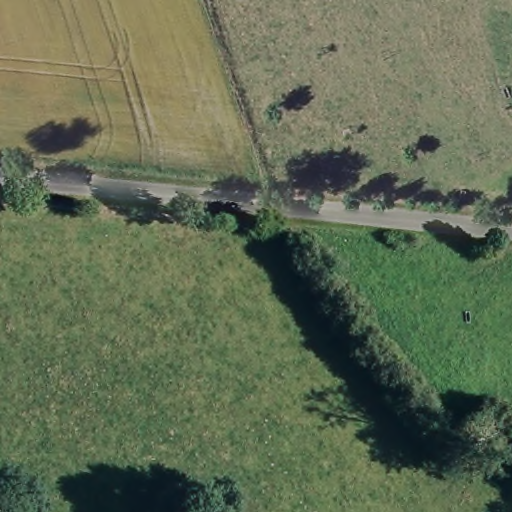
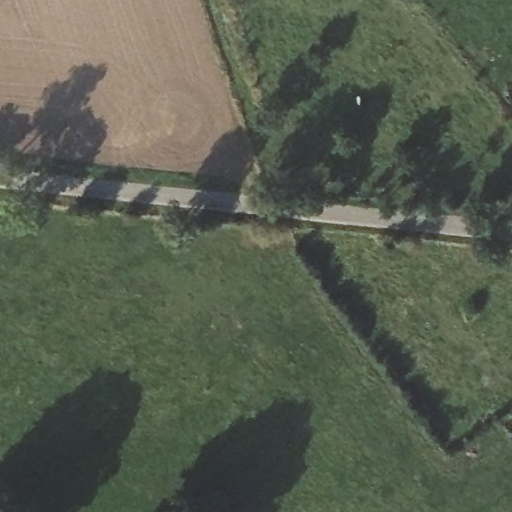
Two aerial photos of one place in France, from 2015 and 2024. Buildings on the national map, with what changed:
[]

